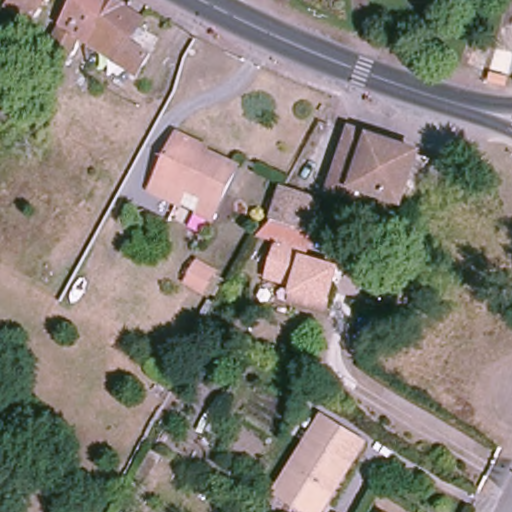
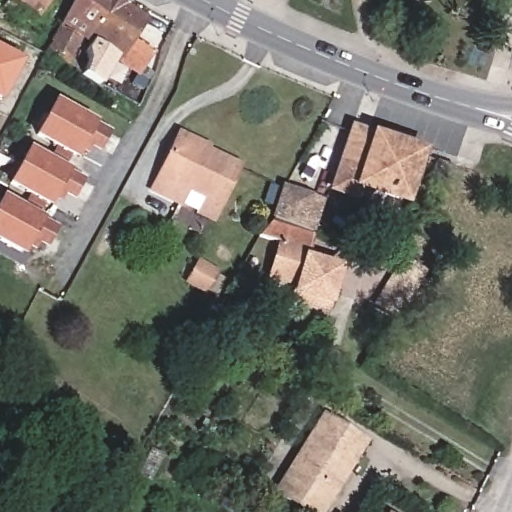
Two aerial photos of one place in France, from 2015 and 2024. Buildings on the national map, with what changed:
unchanged [(25,35),(11,24),(15,19),(0,7),(0,0),(52,0),(25,35)]
unchanged [(149,22),(135,44),(154,57),(139,80),(111,62),(97,89),(77,75),(91,50),(81,42),(67,69),(45,56),(76,0),(117,0),(149,22)]
new [(0,101),(0,53),(20,64),(0,101)]
new [(100,152),(91,148),(88,153),(80,149),(75,160),(33,139),(54,100),(95,121),(112,130),(100,152)]
unchanged [(180,135),(210,150),(207,155),(237,170),(211,223),(151,194),(178,141),(180,135)]
unchanged [(402,201),(389,197),(358,188),(354,199),(343,195),(335,192),(353,136),(356,137),(402,152),(416,157),(402,201)]
new [(75,200),(65,195),(62,200),(54,196),(48,207),(6,186),(27,146),(69,169),(85,177),(75,200)]
unchanged [(451,169),(447,182),(431,177),(435,164),(451,169)]
unchanged [(274,216),(284,187),(321,199),(311,230),(274,216)]
new [(47,249),(37,243),(34,249),(26,246),(21,257),(0,245),(0,196),(1,194),(44,217),(60,226),(47,249)]
unchanged [(287,298),(289,290),(291,283),(267,276),(278,239),(259,233),(269,215),(274,216),(311,230),(314,230),(306,254),(340,264),(330,303),(327,310),(287,298)]
unchanged [(208,268),(217,273),(204,298),(182,285),(196,261),(208,268)]
new [(422,277),(396,320),(371,305),(397,261),(422,277)]
unchanged [(230,358),(207,346),(212,336),(235,349),(230,358)]
unchanged [(303,512),(275,494),(322,420),(365,447),(323,512),(303,512)]
unchanged [(346,512),(340,512),(341,510),(346,512)]

